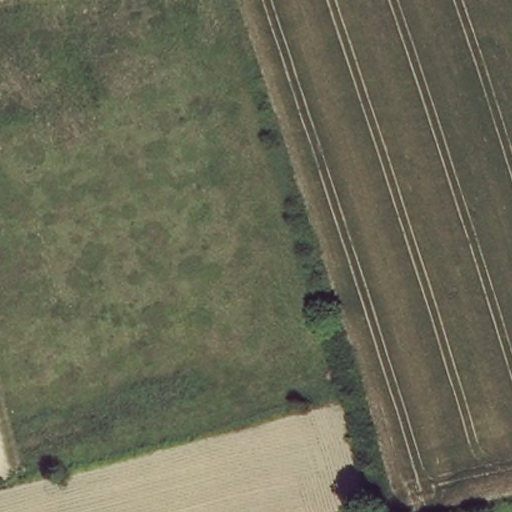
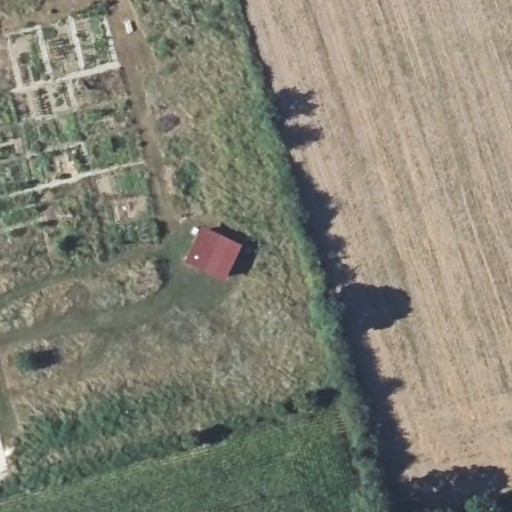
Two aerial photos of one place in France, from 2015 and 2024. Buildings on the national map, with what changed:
new [(225,282),(184,263),(202,226),(243,245),(225,282)]

